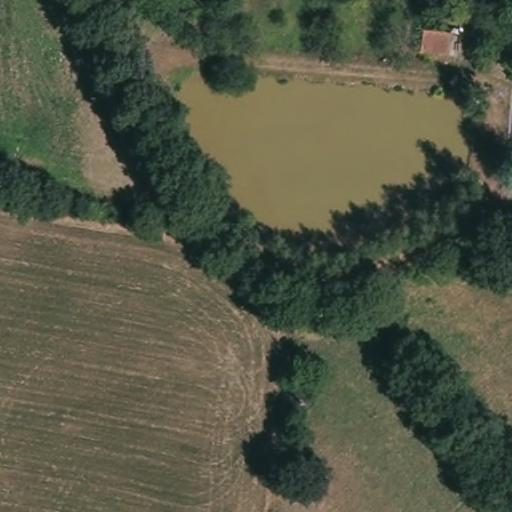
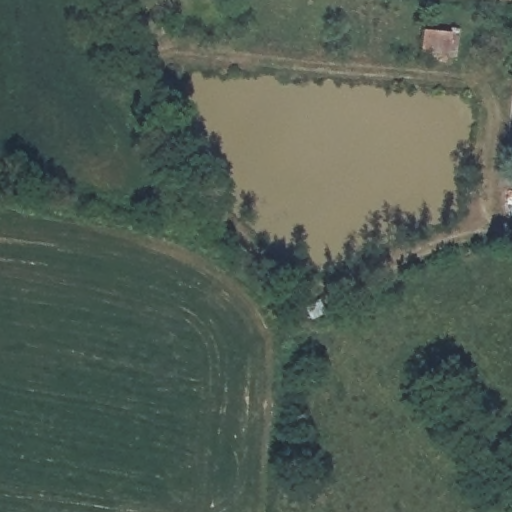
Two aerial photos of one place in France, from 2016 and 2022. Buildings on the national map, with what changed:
unchanged [(422,32),(447,35),(446,59),(418,56),(422,32)]

